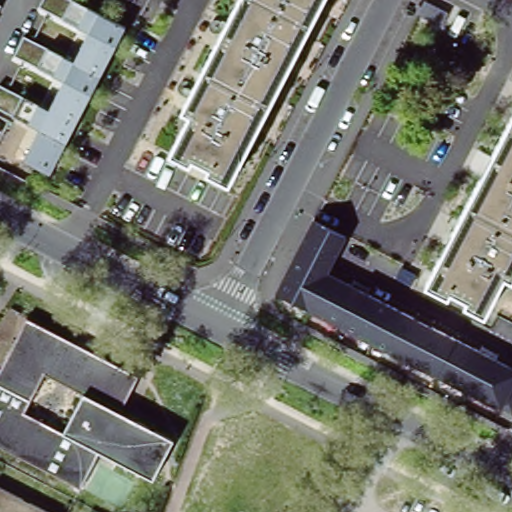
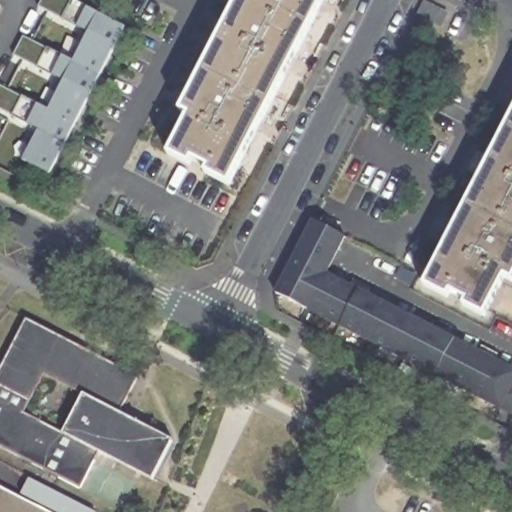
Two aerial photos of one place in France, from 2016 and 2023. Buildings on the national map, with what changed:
unchanged [(40,127),(29,122),(0,109),(0,85),(0,83),(38,104),(50,110),(66,82),(53,76),(14,57),(24,35),(61,56),(74,62),(90,33),(76,27),(38,6),(42,0),(72,0),(88,9),(99,15),(126,31),(51,177),(23,162),(40,127)]
unchanged [(241,141),(220,180),(200,168),(203,163),(186,155),(183,160),(163,149),(226,26),(240,0),(324,0),(249,145),(241,141)]
unchanged [(504,276),(484,315),(463,304),(465,300),(448,291),(444,295),(426,285),(486,170),(512,119),(512,278),(511,280),(504,276)]
unchanged [(458,337),(512,366),(512,414),(500,409),(434,375),(340,325),(311,310),(276,293),(313,221),(348,236),(329,273),(361,289),(458,337)]
unchanged [(118,414),(171,442),(151,481),(96,453),(78,488),(0,448),(0,364),(24,319),(136,377),(118,414)]
unchanged [(48,512),(0,512),(0,487),(48,512)]

